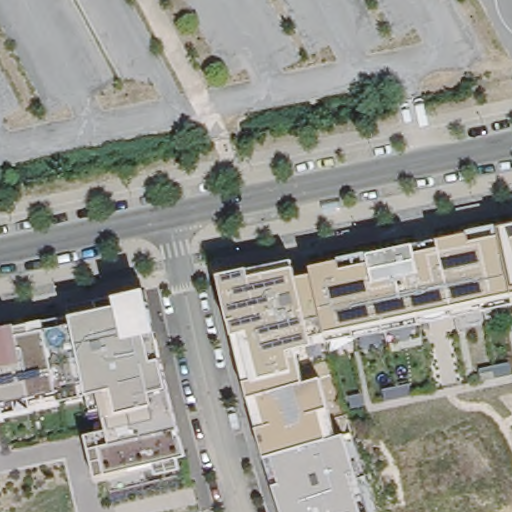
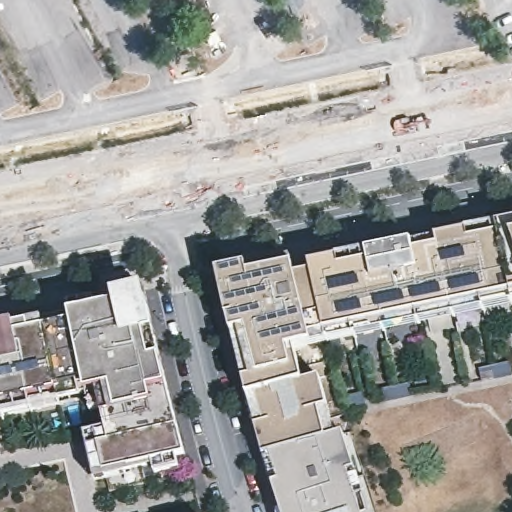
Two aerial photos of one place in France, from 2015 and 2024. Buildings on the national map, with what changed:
unchanged [(512,221),(512,295),(295,344),(303,381),(322,378),(336,439),(266,453),(249,388),(218,272),(512,221)]
unchanged [(193,457),(99,480),(85,430),(109,424),(102,393),(0,416),(0,320),(151,290),(193,457)]
unchanged [(336,439),(345,437),(368,512),(283,512),(266,453),(336,439)]

